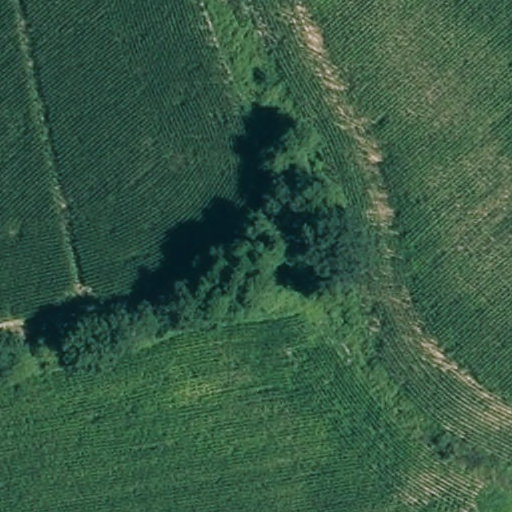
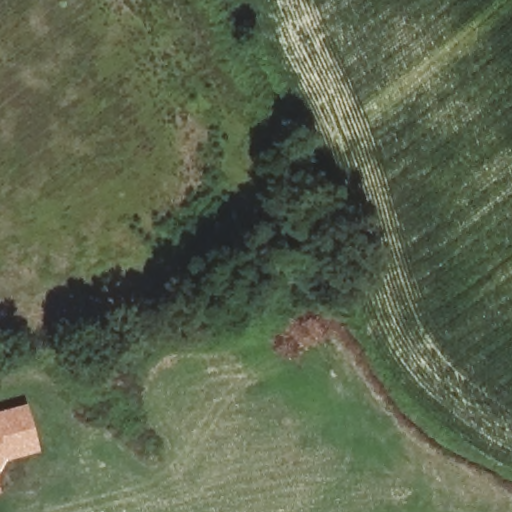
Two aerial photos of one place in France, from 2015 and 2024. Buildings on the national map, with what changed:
new [(27,404),(36,441),(3,444),(0,445),(0,411),(27,404)]

